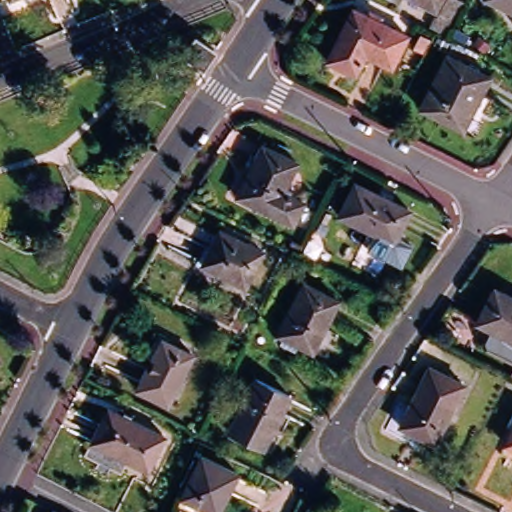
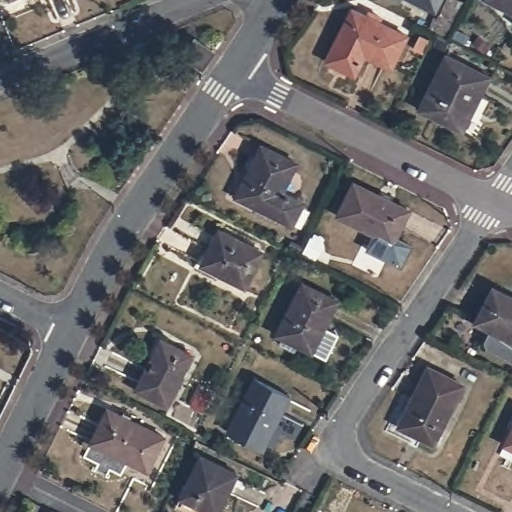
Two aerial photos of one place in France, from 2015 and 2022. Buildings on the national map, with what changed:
unchanged [(8,0),(18,0),(10,4),(8,0)]
unchanged [(403,0),(442,0),(434,16),(403,0)]
unchanged [(488,0),(512,0),(512,12),(488,0)]
unchanged [(389,69),(362,56),(353,74),(325,60),(334,42),(350,9),(405,36),(389,69)]
unchanged [(423,47),(412,41),(418,29),(430,34),(423,47)]
unchanged [(202,71),(182,56),(195,39),(205,46),(215,54),(202,71)]
unchanged [(462,131),(418,109),(445,55),(488,77),(462,131)]
unchanged [(276,192),(297,202),(287,225),(230,197),(256,145),(291,162),(276,192)]
unchanged [(392,242),(338,215),(353,184),(408,212),(392,242)]
unchanged [(244,287),(201,265),(219,230),(262,252),(244,287)]
unchanged [(277,335),(302,282),(337,301),(312,352),(298,346),(295,352),(280,344),(282,337),(277,335)]
unchanged [(487,342),(484,335),(490,323),(476,317),(492,283),(512,293),(512,354),(487,342)]
unchanged [(172,405),(140,389),(166,340),(197,356),(172,405)]
unchanged [(434,443),(398,426),(428,367),(463,385),(434,443)]
unchanged [(263,449),(229,432),(255,380),(289,397),(263,449)]
unchanged [(147,471),(90,442),(107,409),(163,437),(147,471)]
unchanged [(505,444),(512,429),(512,448),(505,444)]
unchanged [(221,512),(196,512),(180,504),(200,461),(237,479),(221,512)]
unchanged [(53,511),(56,512),(53,512),(53,511)]

